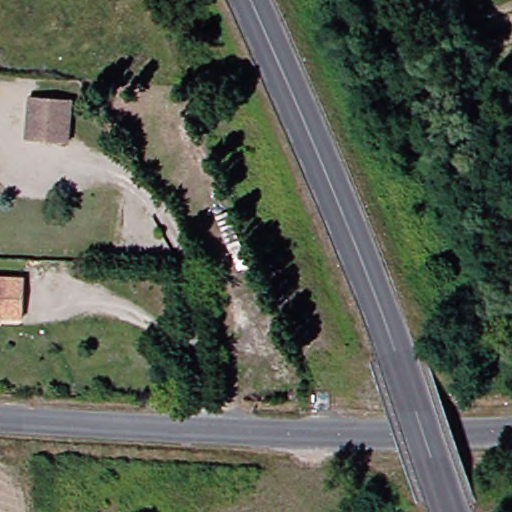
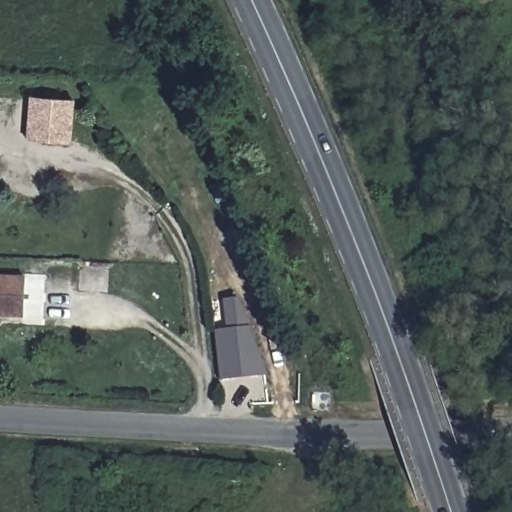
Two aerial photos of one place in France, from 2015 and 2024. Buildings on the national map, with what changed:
unchanged [(24,96),(67,99),(64,141),(22,138),(24,96)]
unchanged [(12,317),(0,317),(0,277),(14,278),(12,317)]
new [(226,328),(222,299),(240,297),(251,326),(268,374),(221,380),(215,330),(226,328)]

